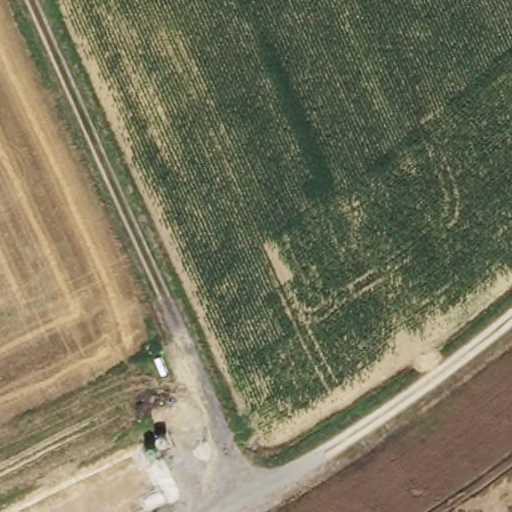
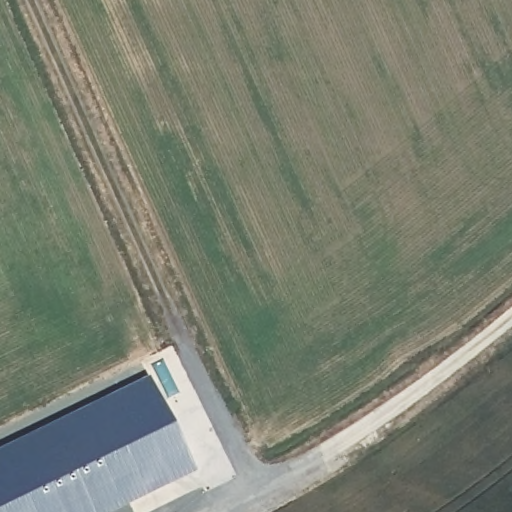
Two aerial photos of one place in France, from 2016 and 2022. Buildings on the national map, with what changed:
new [(108,512),(0,512),(0,447),(148,376),(194,470),(108,512)]
demolished [(146,444),(154,442),(156,453),(146,456),(169,507),(158,512),(0,512),(144,442),(146,444)]

